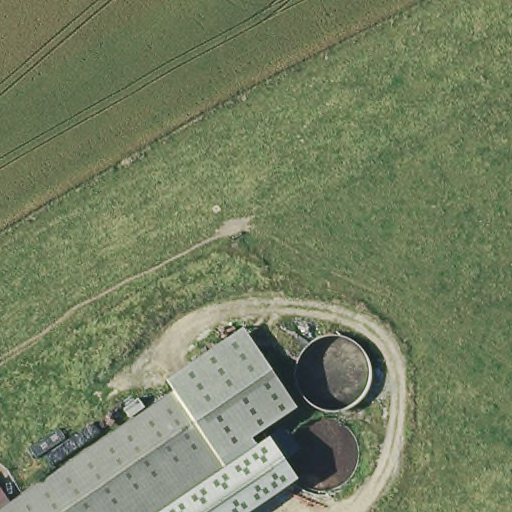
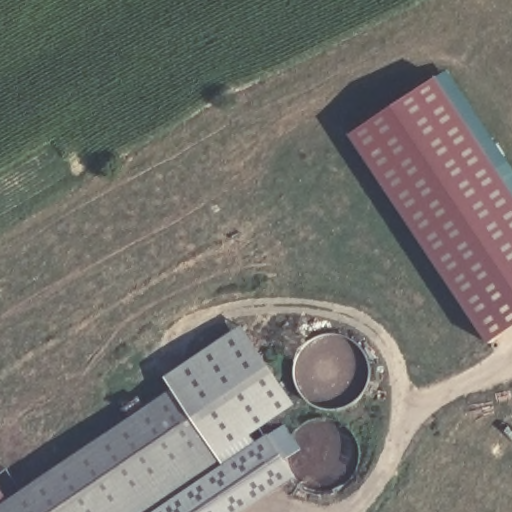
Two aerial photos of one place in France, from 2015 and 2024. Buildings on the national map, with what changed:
new [(484,345),(347,135),(434,76),(512,189),(512,325),(484,345)]
unchanged [(226,470),(172,390),(164,377),(242,321),(296,403),(252,435),(255,440),(267,431),(297,476),(243,512),(164,512),(226,470)]
unchanged [(226,470),(164,512),(0,512),(0,507),(172,390),(226,470)]

